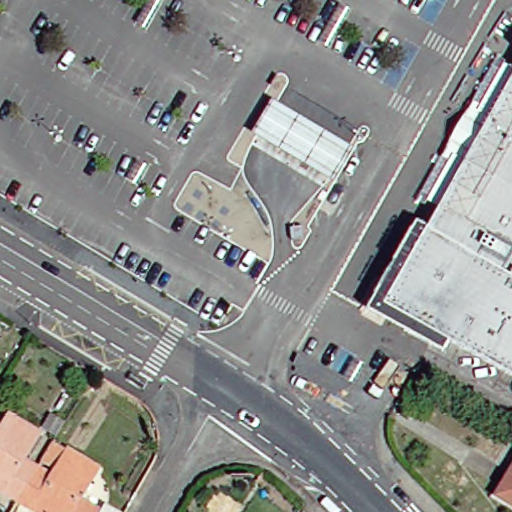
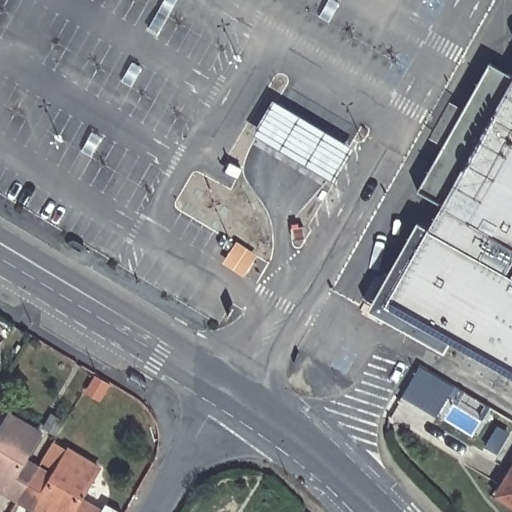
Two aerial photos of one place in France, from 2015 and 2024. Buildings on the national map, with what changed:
unchanged [(208,19),(200,33),(189,26),(197,12),(199,9),(210,15),(208,19)]
unchanged [(329,51),(339,33),(349,15),(360,21),(351,39),(340,57),(329,51)]
unchanged [(187,55),(175,48),(186,30),(197,36),(187,55)]
unchanged [(89,36),(100,43),(90,61),(79,55),(89,36)]
unchanged [(511,54),(509,51),(508,50),(507,47),(507,45),(507,44),(508,42),(508,41),(510,40),(510,39),(512,37),(512,54),(511,54)]
unchanged [(78,81),(67,75),(77,57),(88,64),(78,81)]
unchanged [(428,335),(425,332),(420,343),(385,324),(370,315),(375,305),(419,228),(433,202),(420,195),(440,160),(433,156),(465,102),(471,105),(490,70),(503,78),(512,62),(512,381),(428,335)]
unchanged [(345,149),(325,182),(241,132),(261,99),(345,149)]
unchanged [(37,151),(26,145),(36,126),(48,133),(37,151)]
unchanged [(305,239),(293,240),(291,227),(303,226),(305,239)]
unchanged [(225,263),(214,257),(224,239),(235,245),(225,263)]
new [(402,396),(420,366),(454,387),(436,416),(402,396)]
unchanged [(41,412),(55,421),(46,435),(32,426),(41,412)]
unchanged [(31,432),(15,458),(28,466),(7,500),(0,495),(0,414),(0,413),(31,432)]
unchanged [(28,466),(41,473),(44,469),(31,461),(42,442),(56,451),(58,448),(90,467),(71,497),(90,509),(89,512),(27,512),(7,500),(28,466)]
unchanged [(507,512),(501,508),(503,505),(488,496),(512,457),(512,512),(507,512)]
unchanged [(303,512),(303,511),(305,512),(303,512)]

